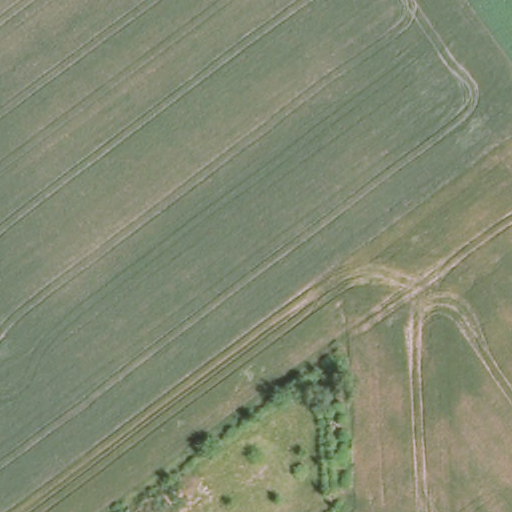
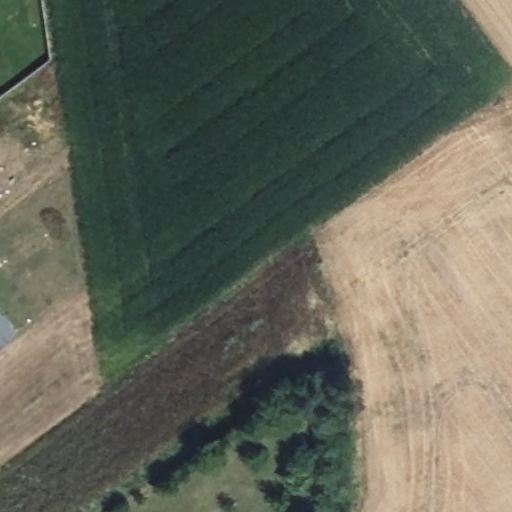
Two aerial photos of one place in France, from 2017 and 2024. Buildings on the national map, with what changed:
new [(0,306),(17,330),(0,342),(0,306)]

